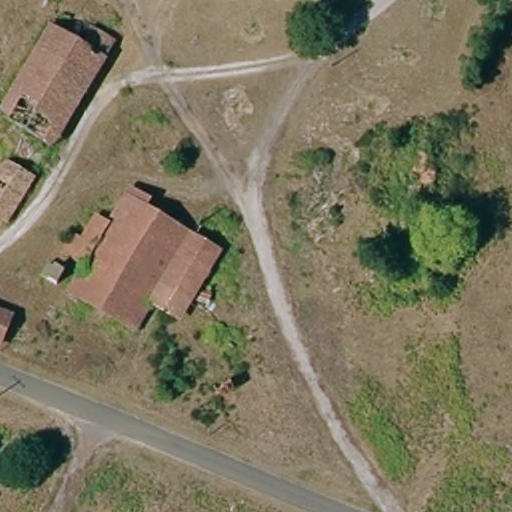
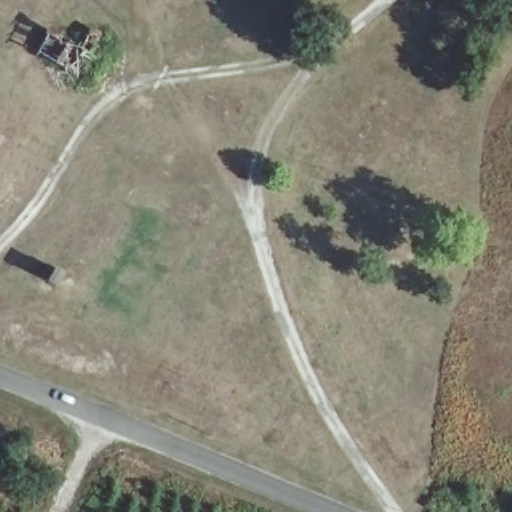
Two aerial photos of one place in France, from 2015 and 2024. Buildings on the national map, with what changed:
demolished [(41,170),(0,145),(0,128),(55,31),(83,47),(93,30),(118,47),(41,170)]
demolished [(5,226),(0,223),(0,182),(11,165),(33,181),(5,226)]
demolished [(159,276),(127,327),(68,290),(128,185),(147,196),(142,207),(185,234),(159,276)]
demolished [(0,343),(0,319),(8,322),(0,343)]

